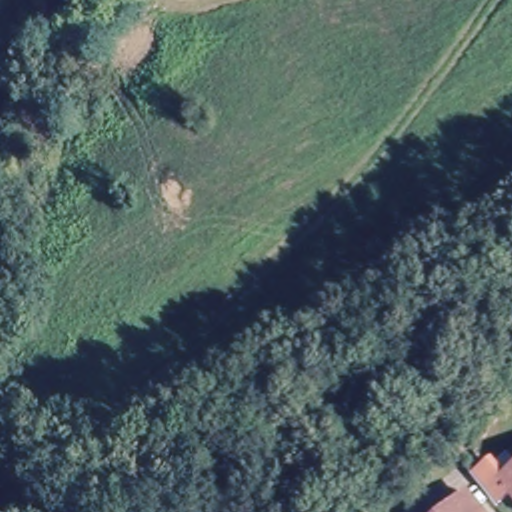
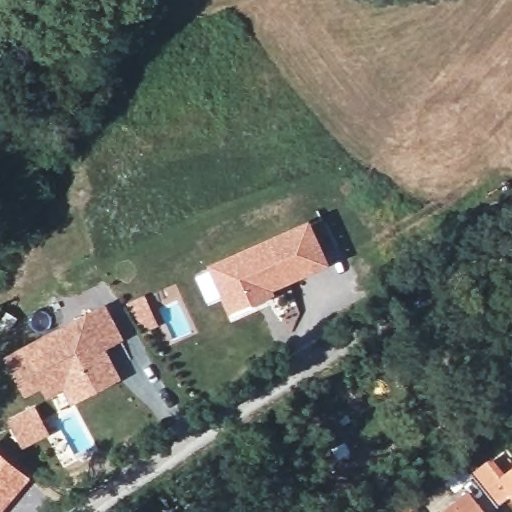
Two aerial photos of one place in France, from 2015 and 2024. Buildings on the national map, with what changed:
new [(326,260),(269,285),(272,297),(234,312),(212,266),(307,222),(326,260)]
new [(124,338),(107,349),(121,377),(71,405),(64,388),(46,397),(42,390),(26,397),(6,355),(105,302),(124,338)]
new [(35,404),(51,434),(21,448),(6,418),(35,404)]
new [(2,512),(0,512),(0,451),(31,477),(2,512)]
unchanged [(499,461),(512,476),(512,498),(507,502),(489,480),(483,473),(499,461)]
unchanged [(486,512),(448,512),(472,493),(486,512)]

